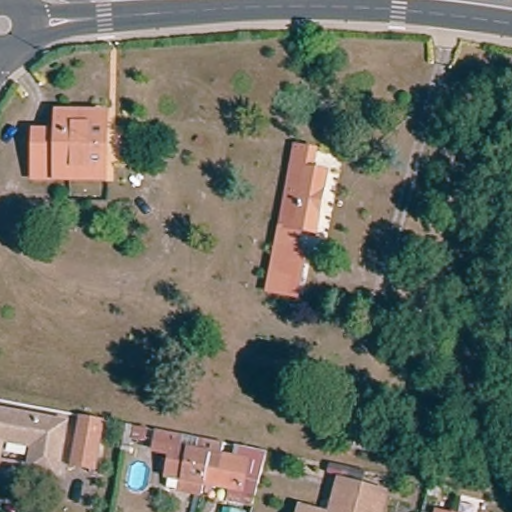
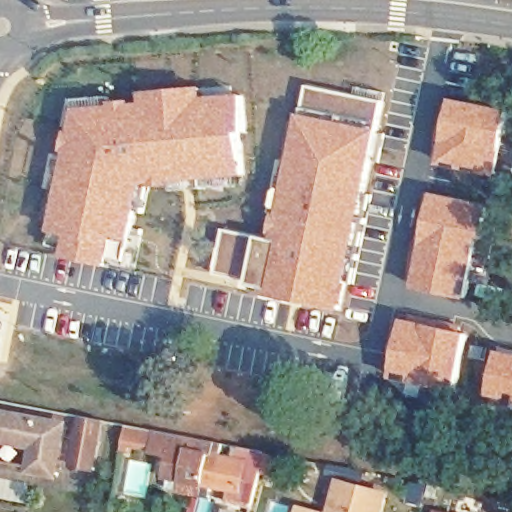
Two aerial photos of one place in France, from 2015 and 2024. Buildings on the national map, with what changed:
new [(265,291),(268,292),(279,238),(270,235),(282,179),(278,178),(287,138),(306,82),(386,100),(380,135),(375,162),(355,242),(342,312),(264,296),(265,291)]
new [(64,144),(71,98),(118,95),(167,86),(207,84),(207,92),(246,91),(250,134),(246,135),(246,179),(227,179),(227,190),(172,192),(154,189),(150,200),(146,199),(131,243),(126,267),(109,263),(108,268),(61,256),(63,249),(46,245),(64,144)]
new [(512,111),(512,120),(499,177),(439,163),(455,98),(512,111)]
demolished [(100,140),(100,163),(106,163),(105,184),(40,180),(41,139),(63,139),(65,119),(108,120),(107,140),(100,140)]
demolished [(308,225),(281,220),(295,144),(314,147),(311,166),(323,169),(313,225),(308,225)]
new [(419,255),(436,191),(495,204),(467,299),(413,288),(419,255)]
new [(223,227),(260,234),(249,284),(214,274),(223,227)]
new [(249,284),(260,234),(270,235),(279,238),(268,292),(265,291),(248,287),(249,284)]
demolished [(277,241),(304,247),(296,291),(268,286),(277,241)]
new [(406,318),(470,333),(456,404),(405,394),(407,380),(392,377),(406,318)]
new [(512,352),(512,402),(488,396),(501,349),(512,352)]
unchanged [(49,467),(25,463),(29,439),(0,434),(0,411),(58,421),(49,467)]
unchanged [(97,416),(88,462),(67,459),(76,412),(97,416)]
unchanged [(398,427),(391,456),(352,447),(338,443),(344,418),(358,422),(359,418),(398,427)]
unchanged [(146,429),(144,443),(133,440),(136,427),(146,429)]
unchanged [(222,444),(221,457),(245,461),(240,489),(215,484),(207,483),(205,495),(166,487),(172,455),(155,452),(158,432),(222,444)]
unchanged [(212,499),(215,484),(240,489),(245,461),(247,448),(268,452),(254,507),(212,499)]
unchanged [(338,477),(384,489),(378,512),(328,512),(338,477)]
unchanged [(298,508),(308,511),(314,512),(298,512),(298,508)]

